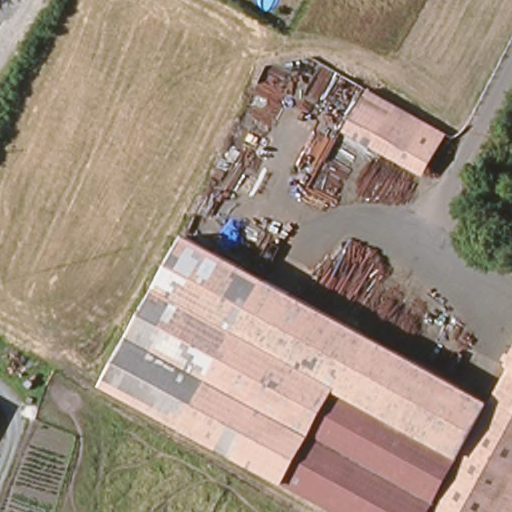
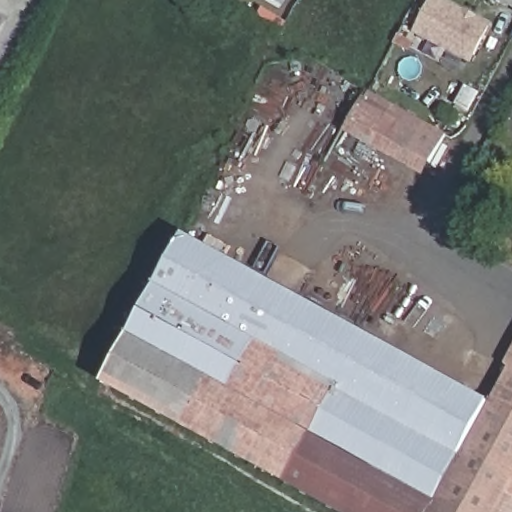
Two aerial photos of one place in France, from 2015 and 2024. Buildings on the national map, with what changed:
new [(472,59),(418,30),(434,0),(440,0),(489,25),(472,59)]
unchanged [(443,135),(421,176),(344,134),(363,92),(443,135)]
unchanged [(512,358),(512,512),(332,512),(104,385),(185,240),(490,403),(512,358)]

